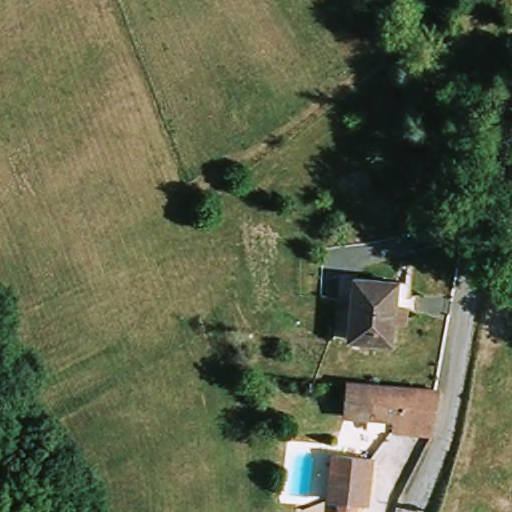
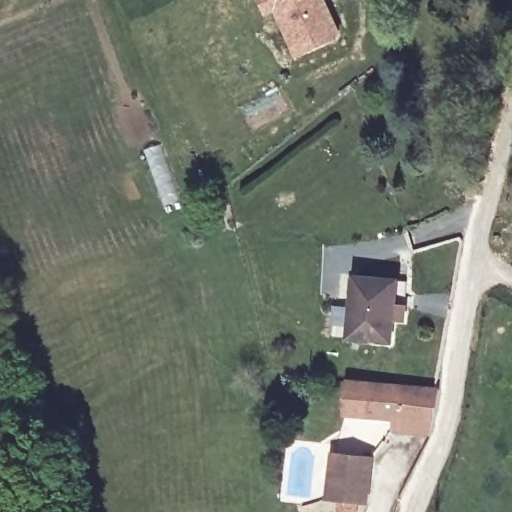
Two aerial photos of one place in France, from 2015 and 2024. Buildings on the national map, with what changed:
new [(261,0),(323,0),(338,32),(335,40),(298,57),(275,9),(265,14),(260,1),(261,0)]
unchanged [(389,345),(351,340),(359,277),(397,282),(389,345)]
unchanged [(438,395),(430,437),(397,433),(398,422),(348,414),(352,380),(438,395)]
unchanged [(370,460),(362,503),(357,502),(355,512),(337,512),(339,499),(325,496),(333,452),(370,460)]

